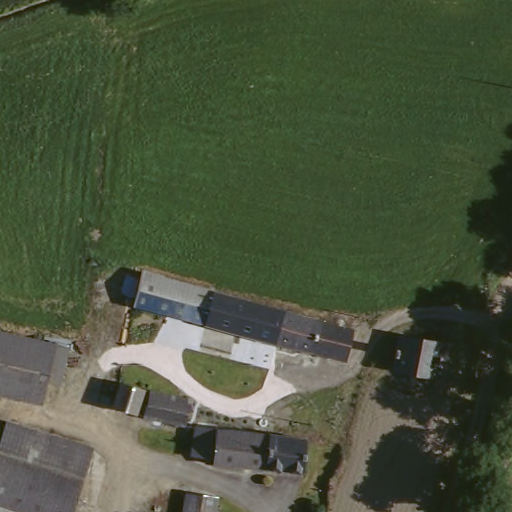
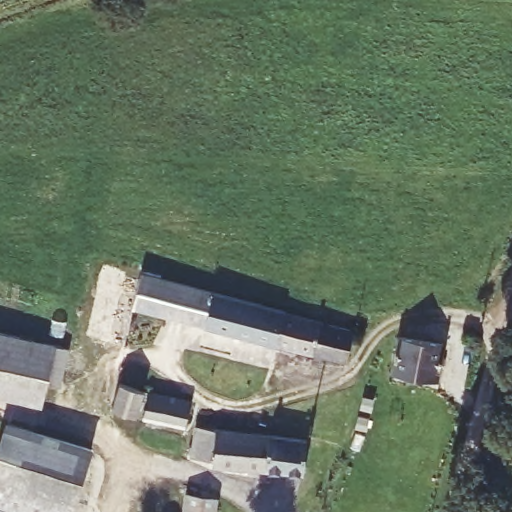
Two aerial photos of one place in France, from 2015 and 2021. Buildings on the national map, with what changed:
unchanged [(132,310),(140,277),(208,296),(198,331),(132,310)]
unchanged [(198,331),(208,296),(281,315),(271,349),(198,331)]
unchanged [(271,349),(281,315),(319,325),(309,359),(271,349)]
unchanged [(340,367),(309,359),(319,325),(328,327),(349,333),(340,367)]
unchanged [(382,369),(391,336),(434,344),(426,380),(382,369)]
unchanged [(58,392),(42,389),(36,408),(0,400),(0,338),(66,353),(58,392)]
unchanged [(101,409),(109,384),(147,395),(140,421),(101,409)]
unchanged [(140,421),(147,395),(189,408),(184,433),(140,421)]
unchanged [(0,444),(6,423),(93,448),(71,512),(26,512),(0,504),(0,444)]
unchanged [(211,471),(210,466),(189,463),(191,436),(251,441),(254,442),(305,446),(301,478),(211,471)]
unchanged [(211,512),(179,512),(181,498),(213,503),(211,512)]
unchanged [(0,512),(0,504),(26,512),(0,512)]

